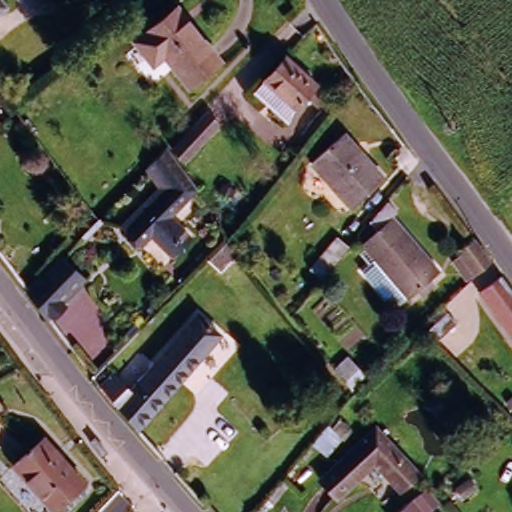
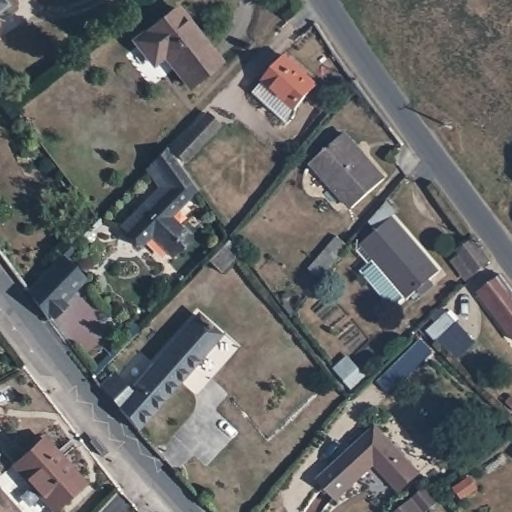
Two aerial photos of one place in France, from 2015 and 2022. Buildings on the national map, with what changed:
unchanged [(180,1),(223,61),(189,86),(165,56),(151,65),(130,34),(180,1)]
unchanged [(0,14),(0,3),(5,10),(0,14)]
unchanged [(284,56),(311,90),(286,108),(259,75),(284,56)]
unchanged [(208,121),(218,131),(187,159),(178,147),(208,121)]
unchanged [(385,175),(354,205),(314,159),(346,130),(385,175)]
unchanged [(138,214),(153,198),(135,178),(163,151),(198,195),(175,219),(194,239),(174,258),(158,241),(144,253),(128,235),(122,229),(138,214)]
unchanged [(371,285),(384,274),(361,247),(397,217),(439,270),(427,281),(431,286),(420,295),(416,290),(404,300),(403,297),(390,308),(371,285)]
unchanged [(490,256),(474,270),(454,248),(472,232),(490,256)]
unchanged [(316,288),(307,276),(336,246),(345,256),(316,288)]
unchanged [(49,321),(48,320),(28,295),(66,257),(88,280),(59,308),(60,310),(49,321)]
unchanged [(512,289),(512,333),(479,293),(501,275),(512,289)]
unchanged [(138,426),(114,398),(103,382),(118,367),(136,386),(168,354),(195,325),(217,344),(138,426)]
unchanged [(399,449),(394,452),(419,477),(401,496),(378,470),(361,485),(344,467),(381,430),(399,449)]
unchanged [(45,434),(85,483),(51,510),(12,462),(45,434)]
unchanged [(412,496),(425,512),(397,512),(412,496)]

